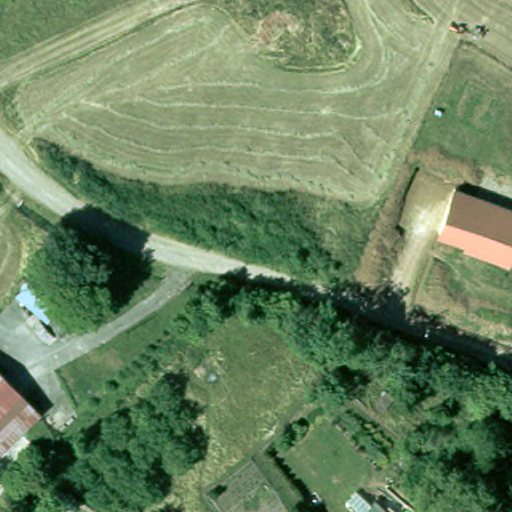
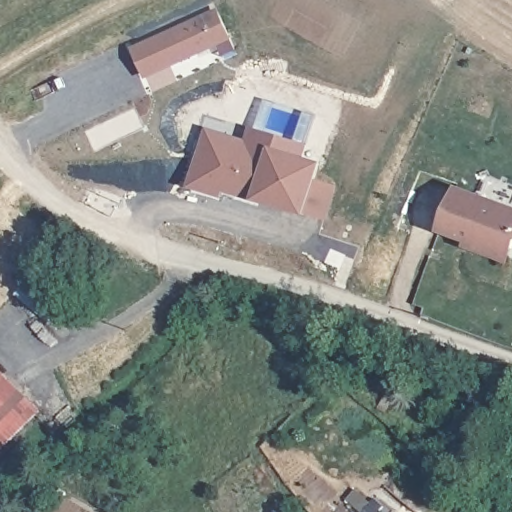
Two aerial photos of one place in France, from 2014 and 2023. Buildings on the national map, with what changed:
new [(216,9),(230,40),(144,79),(129,48),(216,9)]
new [(202,131),(242,142),(245,131),(299,145),(295,160),(310,165),(295,216),(246,205),(247,201),(218,196),(218,198),(185,192),(202,131)]
new [(299,216),(310,181),(333,189),(321,222),(299,216)]
unchanged [(512,256),(508,266),(460,248),(462,242),(433,232),(453,183),(512,206),(512,256)]
unchanged [(60,307),(50,321),(20,295),(32,282),(60,307)]
unchanged [(359,370),(367,356),(377,362),(369,376),(359,370)]
unchanged [(42,417),(0,458),(0,375),(42,417)]

